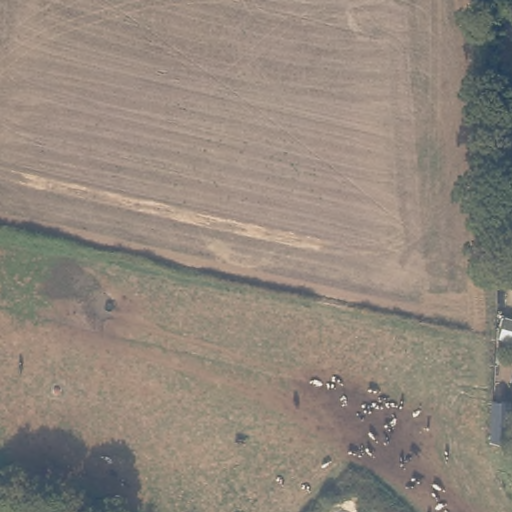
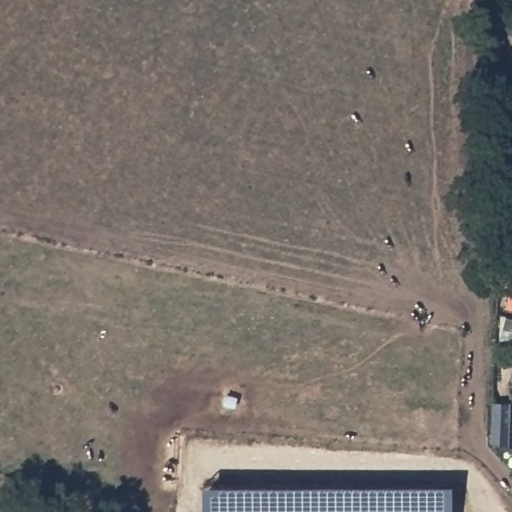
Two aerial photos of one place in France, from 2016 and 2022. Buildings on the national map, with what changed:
unchanged [(494,197),(512,202),(512,234),(495,229),(494,197)]
unchanged [(512,450),(507,448),(496,445),(496,419),(507,419),(512,421),(512,450)]
new [(453,484),(453,512),(203,512),(202,485),(453,484)]

